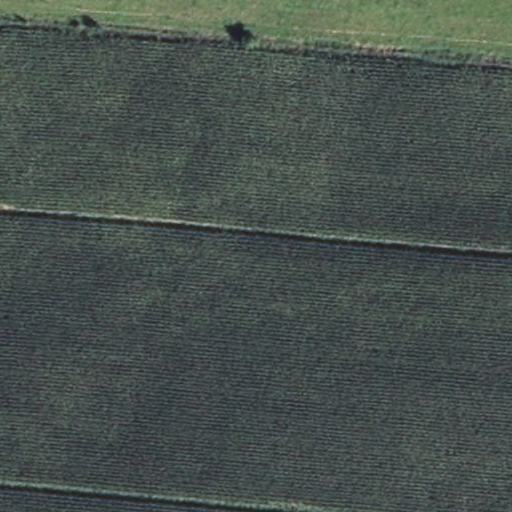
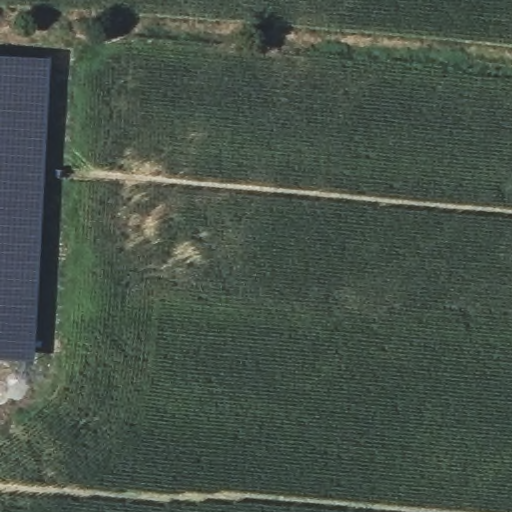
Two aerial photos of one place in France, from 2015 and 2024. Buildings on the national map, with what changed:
new [(41,251),(40,265),(35,265),(35,301),(40,301),(35,361),(0,359),(0,55),(51,58),(41,251)]

